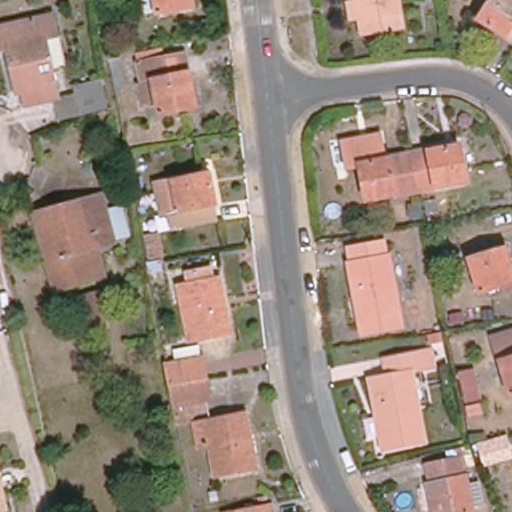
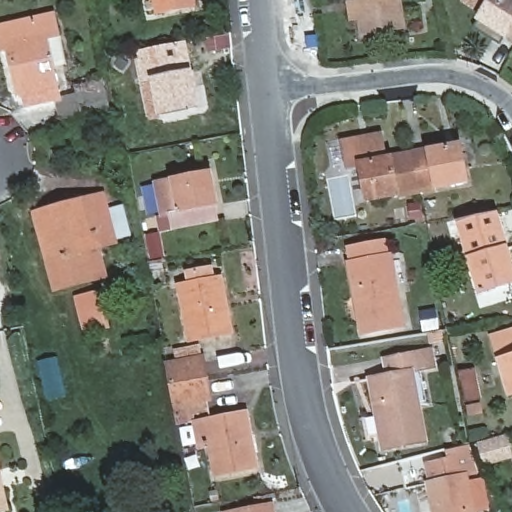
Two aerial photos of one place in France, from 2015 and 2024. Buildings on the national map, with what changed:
unchanged [(194,7),(156,15),(154,0),(193,0),(194,7)]
unchanged [(404,32),(360,40),(358,23),(361,23),(358,5),(356,6),(355,0),(399,0),(404,32)]
unchanged [(485,0),(512,0),(512,44),(473,19),(485,0)]
unchanged [(26,105),(23,93),(17,94),(7,48),(0,50),(0,26),(53,14),(58,36),(64,63),(51,66),(58,99),(26,105)]
unchanged [(158,115),(155,101),(143,104),(139,84),(141,83),(137,63),(138,62),(136,54),(163,49),(165,57),(186,53),(197,107),(158,115)]
unchanged [(126,89),(116,91),(110,60),(120,58),(126,89)]
unchanged [(109,108),(81,116),(73,86),(102,79),(109,108)]
unchanged [(467,182),(420,191),(415,168),(412,153),(459,144),(467,182)]
unchanged [(412,153),(415,168),(420,191),(366,201),(359,162),(412,153)]
unchanged [(161,216),(166,215),(159,184),(214,173),(220,204),(219,204),(222,221),(178,229),(164,231),(161,216)]
unchanged [(104,277),(55,290),(38,228),(69,219),(65,206),(90,200),(93,212),(106,209),(123,205),(131,234),(114,237),(115,242),(96,247),(104,277)]
new [(508,246),(506,247),(469,258),(464,259),(454,222),(497,211),(508,246)]
unchanged [(170,257),(155,259),(149,235),(165,232),(170,257)]
unchanged [(403,325),(361,333),(358,317),(361,317),(357,296),(354,297),(348,263),(351,263),(349,248),(384,241),(387,256),(390,255),(403,325)]
unchanged [(512,282),(479,293),(469,258),(506,247),(512,268),(512,282)]
unchanged [(168,271),(154,274),(152,263),(166,260),(168,271)]
unchanged [(231,333),(188,341),(177,286),(187,284),(185,271),(211,267),(213,279),(220,278),(231,333)]
unchanged [(107,327),(85,333),(76,298),(98,293),(107,327)]
unchanged [(492,336),(512,330),(512,393),(510,394),(492,336)]
unchanged [(201,355),(174,360),(173,350),(200,345),(201,355)]
unchanged [(426,441),(382,449),(379,434),(382,433),(378,413),(375,413),(368,378),(386,375),(383,357),(432,349),(435,367),(413,371),(426,441)]
unchanged [(177,423),(176,416),(170,385),(165,363),(203,357),(207,378),(211,400),(205,401),(207,411),(191,413),(193,421),(177,423)]
unchanged [(480,399),(464,402),(458,372),(475,368),(480,399)]
unchanged [(256,467),(215,475),(208,446),(198,447),(194,423),(245,413),(256,467)]
unchanged [(512,450),(492,457),(489,444),(511,437),(512,440),(512,450)]
unchanged [(491,458),(485,460),(480,447),(487,444),(491,458)]
unchanged [(434,512),(427,483),(431,482),(428,466),(460,460),(463,475),(466,474),(474,512),(434,512)]
unchanged [(0,486),(6,509),(0,511),(0,486)]
unchanged [(278,512),(240,512),(277,505),(278,512)]

